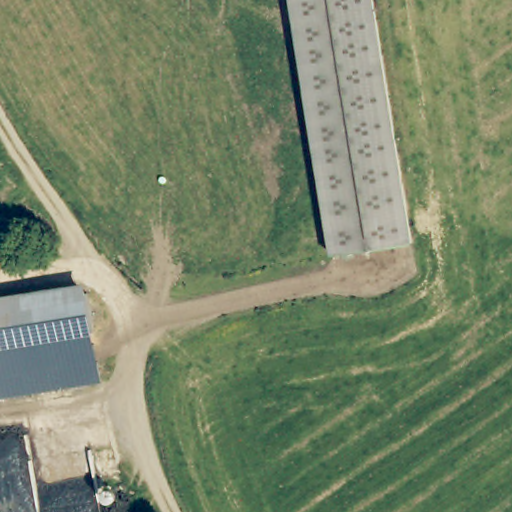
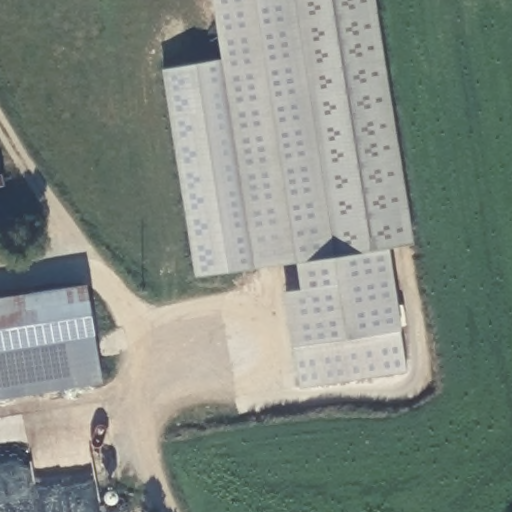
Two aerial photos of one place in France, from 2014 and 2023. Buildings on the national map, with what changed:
new [(339,254),(390,245),(401,331),(406,372),(301,388),(292,347),(285,291),(301,288),(296,261),(256,266),(220,60),(211,0),(296,0),(339,254)]
unchanged [(416,241),(339,254),(296,0),(376,0),(416,241)]
new [(192,277),(159,71),(220,60),(256,266),(192,277)]
unchanged [(101,383),(0,399),(0,309),(86,295),(98,370),(101,383)]

